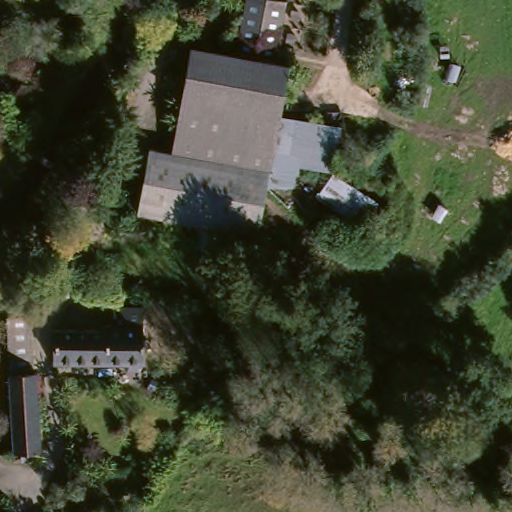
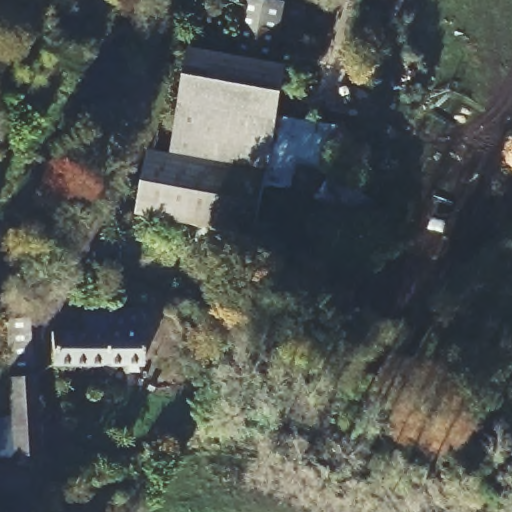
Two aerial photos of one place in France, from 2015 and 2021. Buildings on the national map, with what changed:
unchanged [(271,60),(271,62),(230,59),(230,55),(235,0),(268,0),(276,1),(271,60)]
unchanged [(230,55),(230,59),(271,62),(271,60),(287,62),(275,171),(271,206),(267,240),(245,238),(232,237),(240,168),(170,162),(183,50),(230,55)]
unchanged [(333,173),(298,168),(294,190),(273,187),(275,171),(281,117),(340,128),(333,173)]
unchanged [(170,162),(240,168),(232,237),(189,233),(141,229),(143,214),(147,161),(170,162)]
unchanged [(362,230),(315,200),(334,175),(379,205),(362,230)]
unchanged [(108,327),(109,321),(148,320),(150,353),(143,363),(136,364),(129,365),(129,356),(58,360),(58,331),(108,327)]
unchanged [(6,326),(30,325),(31,342),(41,447),(20,449),(8,342),(6,326)]

